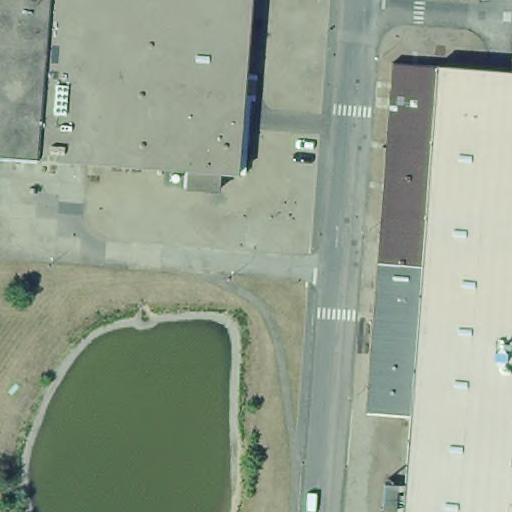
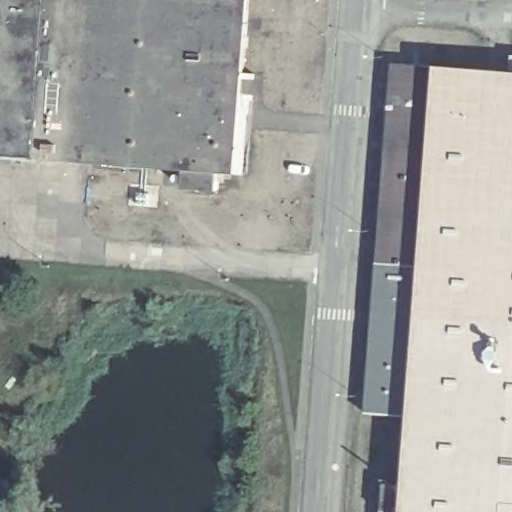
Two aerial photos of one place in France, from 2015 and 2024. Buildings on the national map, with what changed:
unchanged [(230,176),(210,176),(208,191),(177,190),(177,175),(0,161),(0,0),(245,0),(230,176)]
unchanged [(387,64),(432,67),(417,265),(372,261),(387,64)]
unchanged [(360,415),(372,261),(417,265),(432,67),(512,73),(512,512),(397,512),(405,420),(360,415)]

